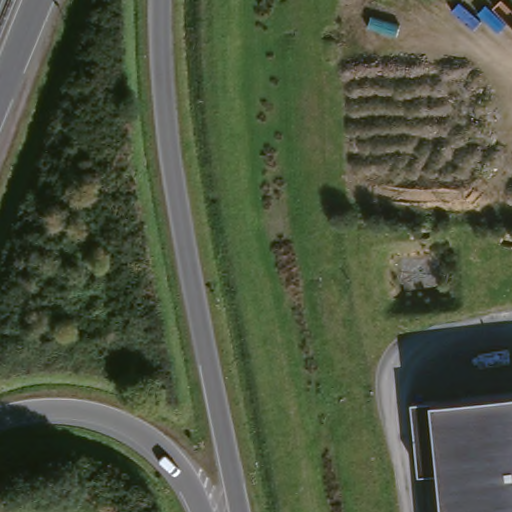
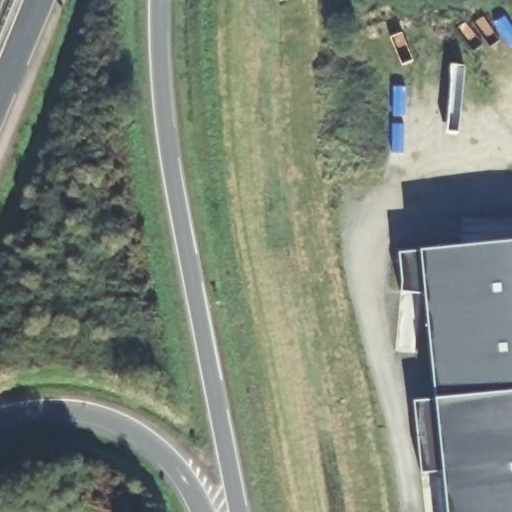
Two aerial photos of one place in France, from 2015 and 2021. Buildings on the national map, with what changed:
new [(422,294),(400,292),(401,281),(397,253),(418,251),(512,242),(512,391),(433,398),(422,294)]
unchanged [(416,476),(409,402),(429,398),(512,391),(512,512),(440,512),(436,474),(416,476)]

